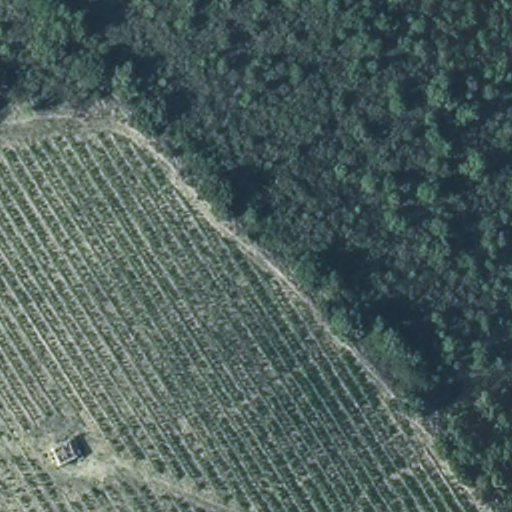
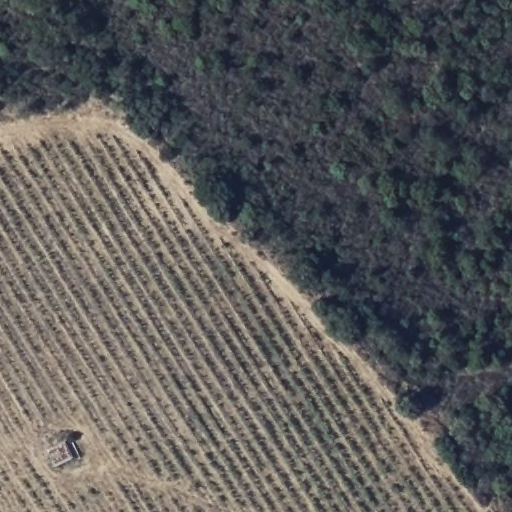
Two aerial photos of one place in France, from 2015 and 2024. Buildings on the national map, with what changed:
unchanged [(65,431),(78,453),(51,465),(43,443),(65,431)]

